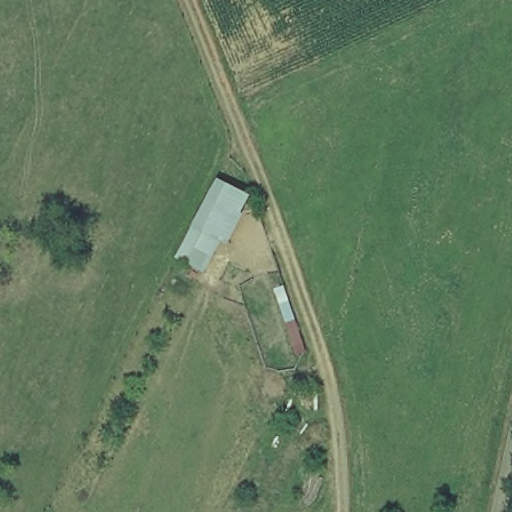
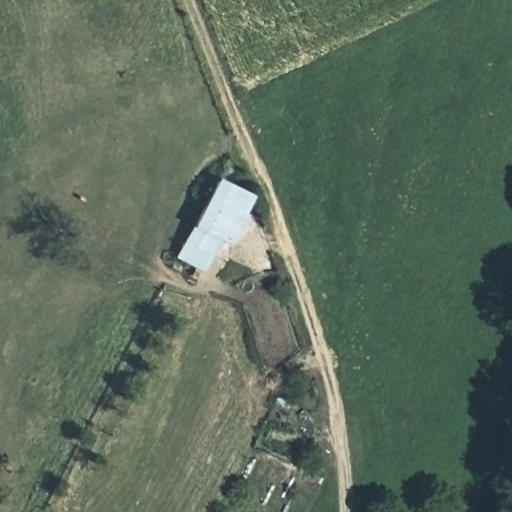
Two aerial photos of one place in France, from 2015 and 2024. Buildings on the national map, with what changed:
unchanged [(253,196),(229,245),(216,242),(200,271),(169,256),(191,226),(216,179),(253,196)]

